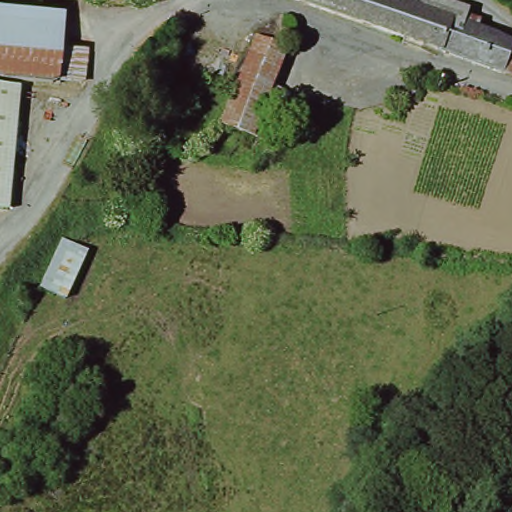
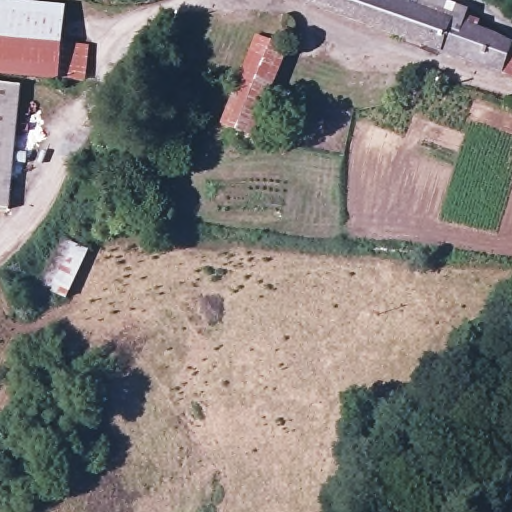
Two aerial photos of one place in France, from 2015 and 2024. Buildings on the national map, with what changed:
unchanged [(64,5),(66,44),(89,46),(86,82),(0,75),(0,0),(18,0),(64,5)]
unchanged [(512,48),(512,84),(310,8),(291,0),(377,0),(453,26),(460,20),(476,24),(475,34),(512,48)]
unchanged [(274,108),(252,139),(202,116),(248,29),(278,42),(250,95),(274,108)]
unchanged [(393,69),(392,77),(357,63),(360,53),(393,69)]
unchanged [(10,208),(0,208),(0,88),(19,90),(10,208)]
unchanged [(64,236),(92,248),(71,295),(43,283),(64,236)]

